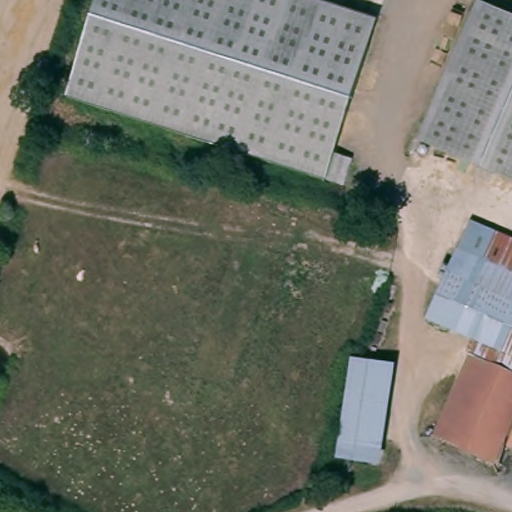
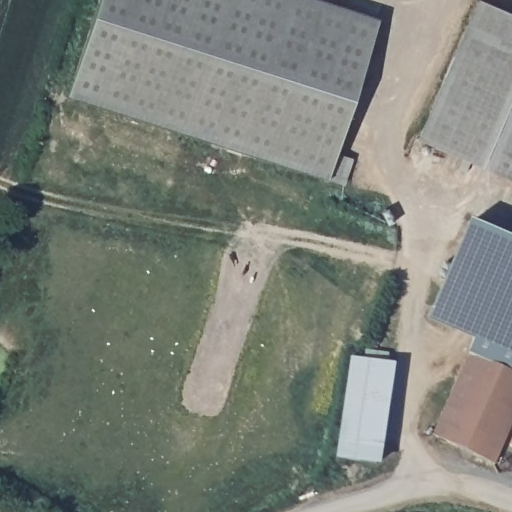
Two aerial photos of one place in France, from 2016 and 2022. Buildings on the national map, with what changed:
unchanged [(378,19),(330,176),(72,94),(100,0),(320,0),(378,19)]
unchanged [(512,14),(512,186),(415,137),(486,1),(512,14)]
unchanged [(472,345),(480,331),(432,305),(462,247),(470,232),(512,251),(512,365),(472,345)]
unchanged [(512,365),(512,419),(448,388),(472,345),(512,365)]
unchanged [(378,467),(338,457),(334,456),(357,359),(368,362),(401,370),(378,467)]
unchanged [(512,419),(512,420),(489,462),(427,427),(448,388),(512,419)]
unchanged [(506,443),(512,429),(512,446),(506,443)]

